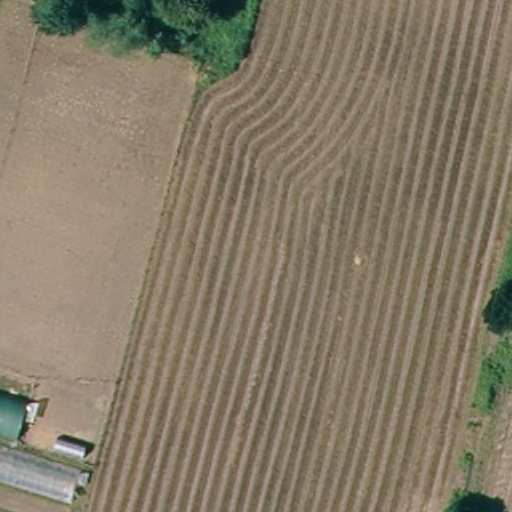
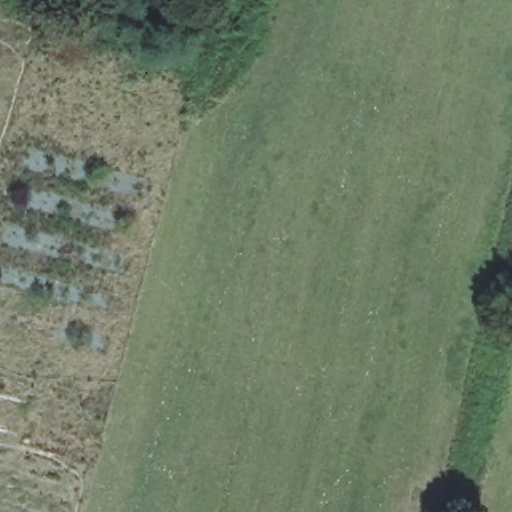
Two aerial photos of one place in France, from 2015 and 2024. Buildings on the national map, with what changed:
new [(27,403),(14,454),(78,473),(66,512),(0,512),(0,394),(27,403)]

